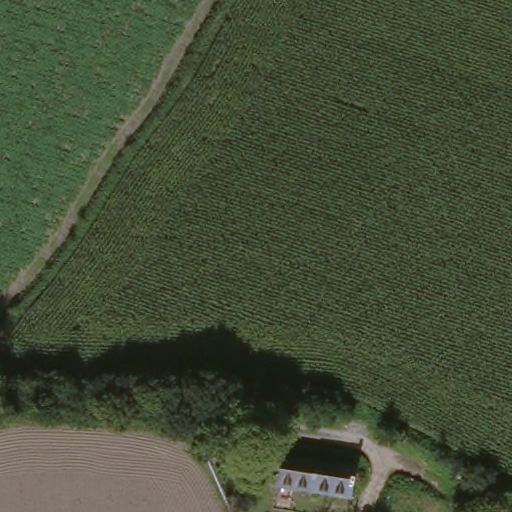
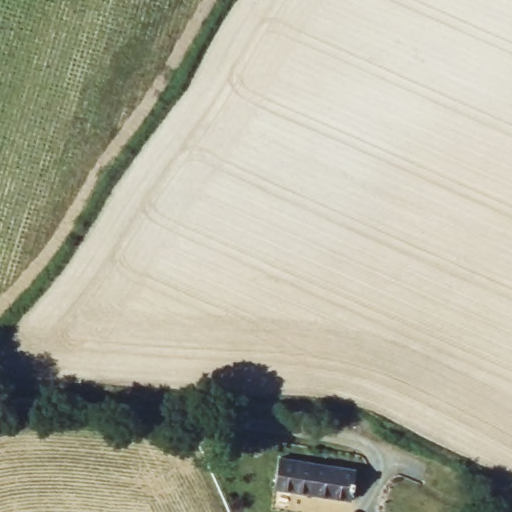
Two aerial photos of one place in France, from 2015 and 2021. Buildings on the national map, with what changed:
unchanged [(350,473),(348,501),(274,492),(278,464),(350,473)]

